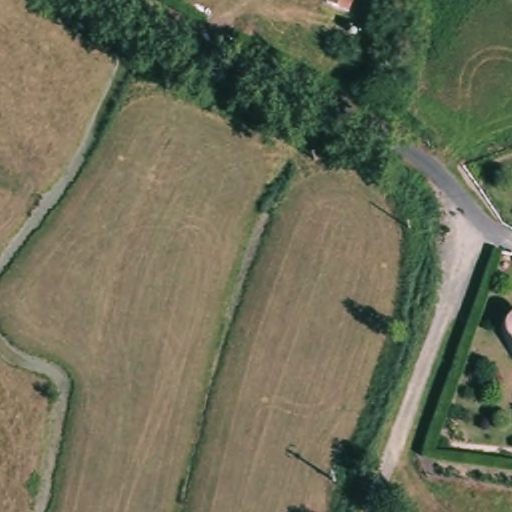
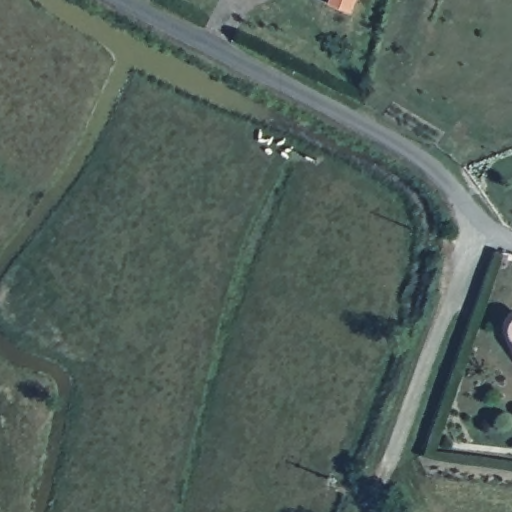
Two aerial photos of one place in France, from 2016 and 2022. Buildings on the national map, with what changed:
unchanged [(335,15),(317,6),(319,0),(342,0),(335,15)]
unchanged [(509,346),(505,343),(504,337),(503,332),(504,327),(505,322),(512,319),(512,347),(509,346)]

